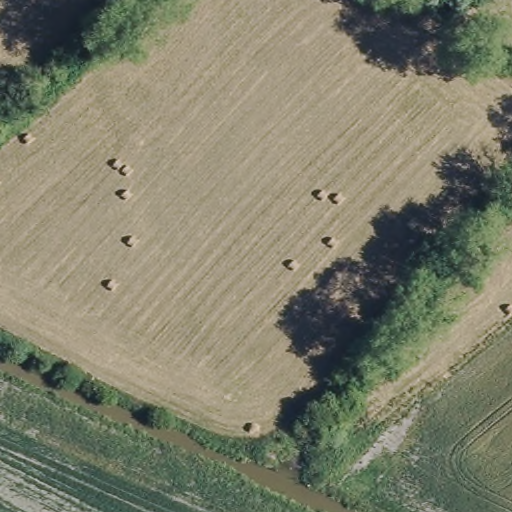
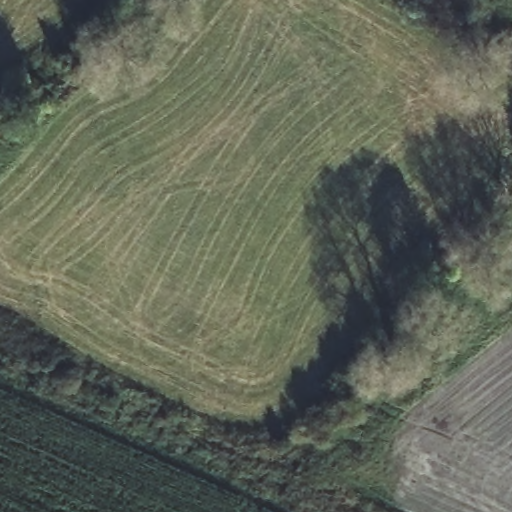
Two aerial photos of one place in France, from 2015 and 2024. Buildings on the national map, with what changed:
[]

